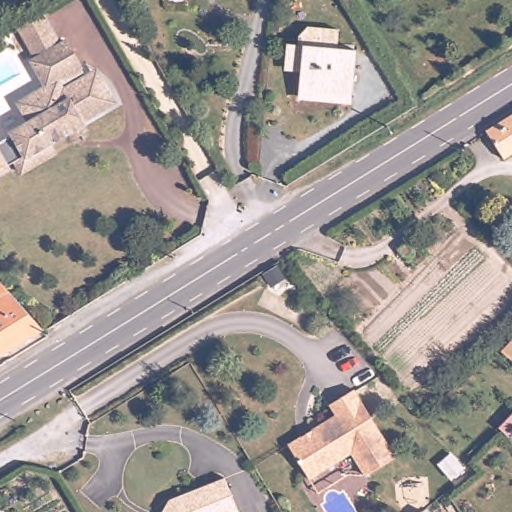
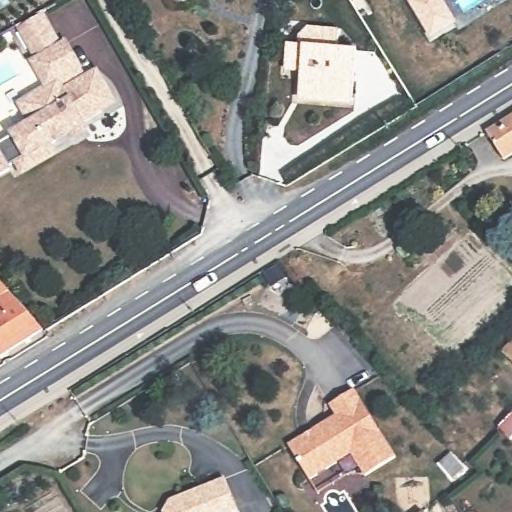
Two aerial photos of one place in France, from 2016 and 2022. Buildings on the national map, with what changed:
new [(425,29),(409,3),(412,0),(436,0),(446,16),(450,21),(429,35),(425,29)]
unchanged [(10,129),(24,121),(17,109),(14,103),(43,89),(12,31),(48,10),(82,76),(98,68),(116,110),(87,123),(91,131),(71,144),(66,136),(55,143),(61,156),(31,170),(10,129)]
unchanged [(298,46),(299,34),(308,26),(337,29),(336,50),(356,51),(354,105),(299,100),(299,71),(285,71),(287,43),(298,46)]
unchanged [(21,116),(24,121),(19,123),(10,129),(31,170),(15,179),(11,170),(0,176),(0,118),(17,109),(21,116)]
unchanged [(506,153),(491,130),(512,116),(512,158),(511,159),(506,153)]
unchanged [(393,239),(366,261),(358,252),(384,230),(393,239)]
unchanged [(48,332),(0,360),(0,279),(48,332)]
unchanged [(318,495),(310,480),(289,447),(340,416),(333,404),(355,391),(395,457),(365,476),(350,476),(318,495)]
unchanged [(162,510),(167,499),(222,478),(238,511),(234,512),(165,512),(162,510)]

